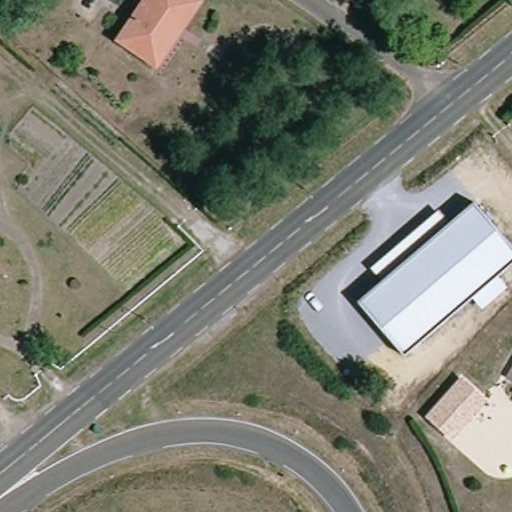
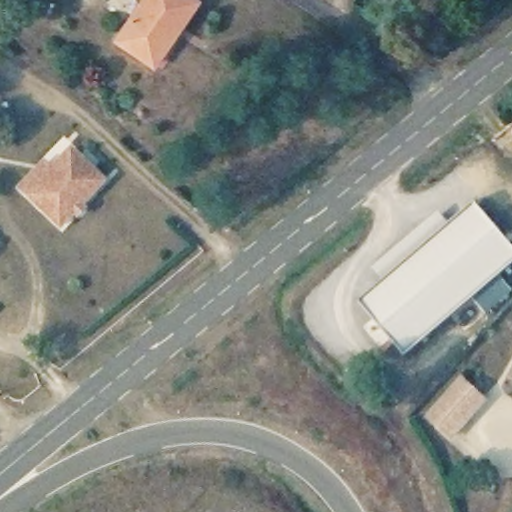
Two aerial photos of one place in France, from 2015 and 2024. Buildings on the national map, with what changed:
unchanged [(157,60),(121,36),(148,0),(196,0),(199,2),(157,60)]
new [(107,181),(84,207),(86,210),(76,220),(72,217),(60,229),(18,189),(41,160),(49,167),(70,146),(107,181)]
unchanged [(512,246),(512,262),(404,355),(356,300),(381,280),(369,267),(439,209),(450,221),(473,201),(512,246)]
unchanged [(509,377),(512,372),(512,379),(509,377)]
unchanged [(451,437),(428,417),(461,380),(484,400),(451,437)]

